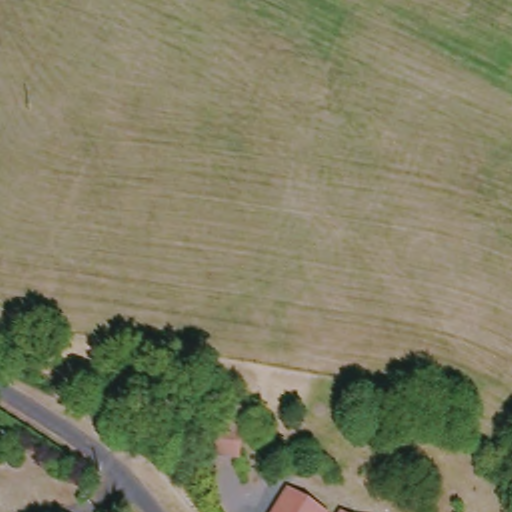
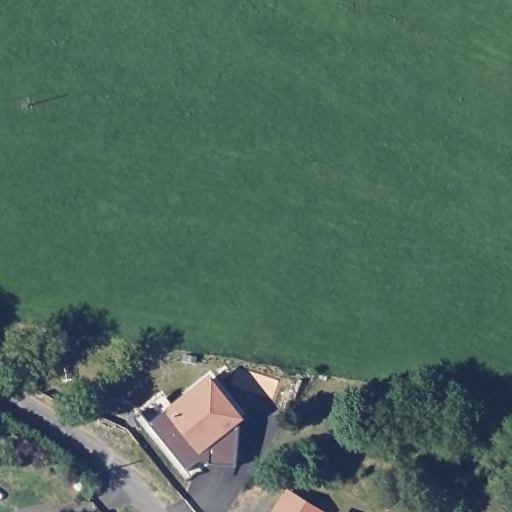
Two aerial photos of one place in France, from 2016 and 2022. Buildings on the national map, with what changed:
new [(241,422),(239,465),(201,457),(189,468),(154,419),(214,371),(248,412),(241,422)]
demolished [(204,453),(210,425),(222,427),(226,409),(244,413),(240,431),(242,431),(235,460),(204,453)]
unchanged [(328,512),(280,512),(298,488),(328,512)]

